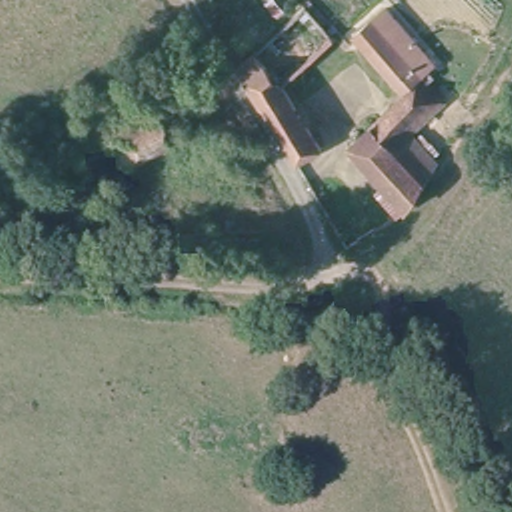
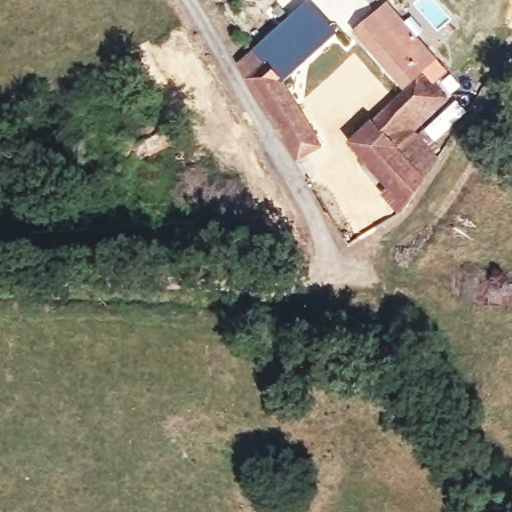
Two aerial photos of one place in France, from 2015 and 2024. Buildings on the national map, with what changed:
new [(337,34),(284,82),(263,47),(261,43),(308,0),(337,34)]
unchanged [(393,6),(435,64),(428,71),(423,75),(377,20),(393,6)]
unchanged [(354,144),(408,92),(361,33),(377,20),(423,75),(428,71),(448,96),(417,129),(440,154),(407,207),(354,144)]
unchanged [(263,47),(322,147),(297,163),(240,66),(248,59),(263,47)]
unchanged [(175,139),(128,164),(110,128),(155,103),(175,139)]

